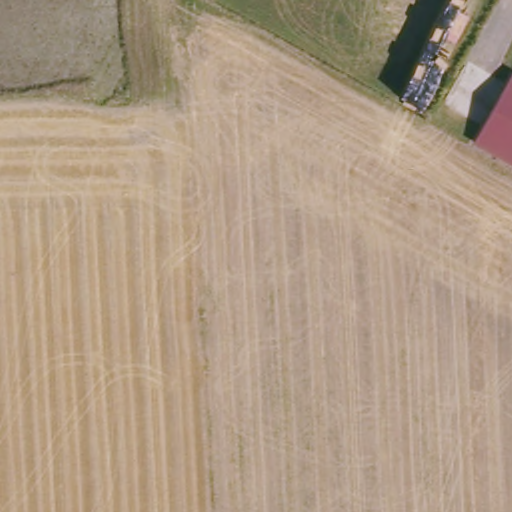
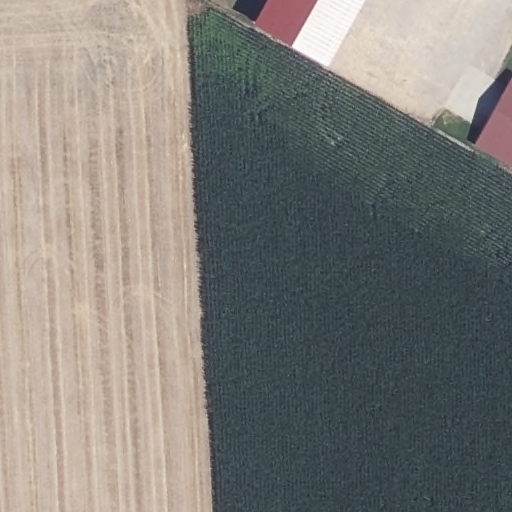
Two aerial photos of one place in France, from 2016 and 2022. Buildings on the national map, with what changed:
new [(260,0),(354,0),(324,54),(252,14),(260,0)]
unchanged [(512,83),(512,166),(477,146),(512,83)]

